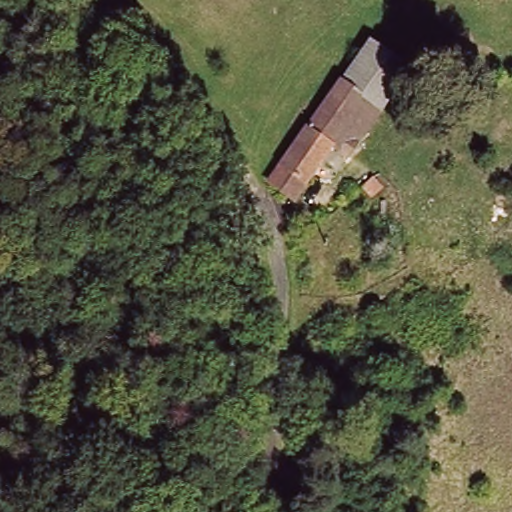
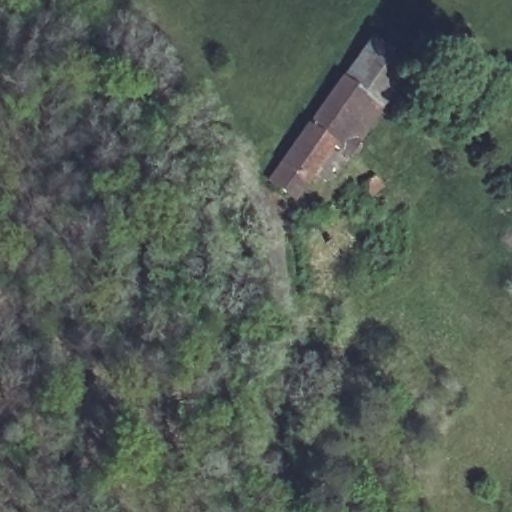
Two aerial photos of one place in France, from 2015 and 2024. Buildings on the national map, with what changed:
unchanged [(414,81),(377,139),(328,106),(365,50),(414,81)]
unchanged [(360,165),(343,154),(309,205),(278,184),(328,106),(377,139),(360,165)]
unchanged [(392,175),(406,184),(392,205),(378,197),(392,175)]

